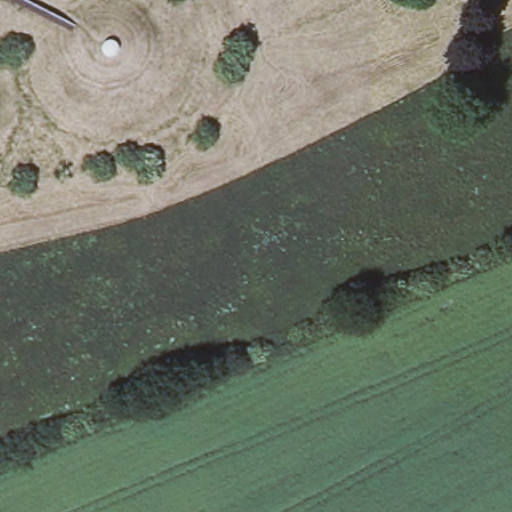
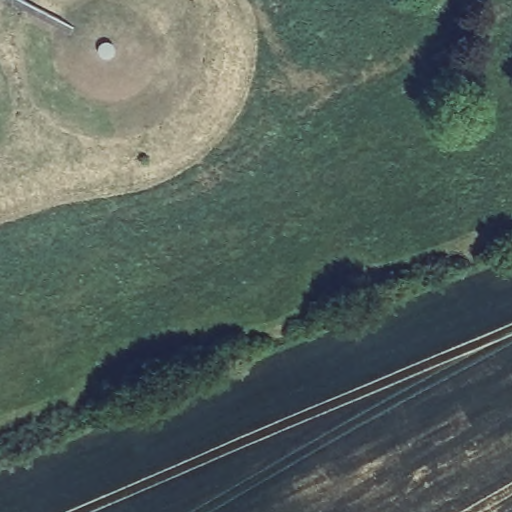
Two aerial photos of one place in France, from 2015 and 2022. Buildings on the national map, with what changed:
[]

